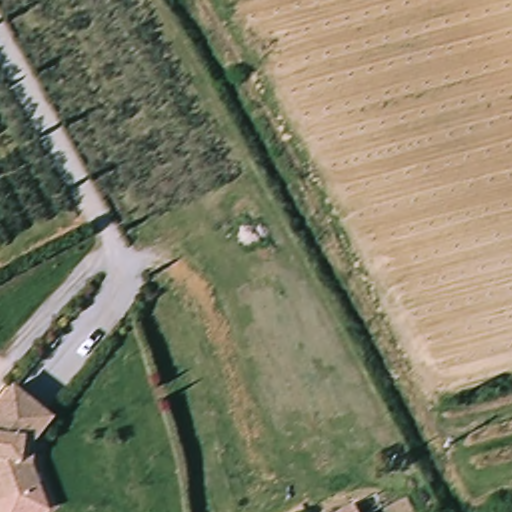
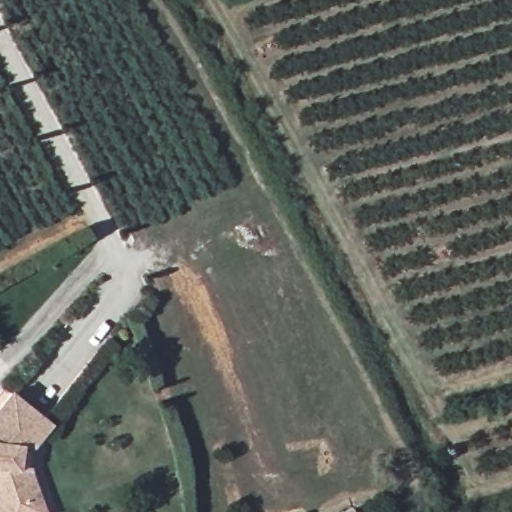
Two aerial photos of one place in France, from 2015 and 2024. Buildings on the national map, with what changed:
unchanged [(50,441),(46,473),(55,499),(19,512),(3,512),(0,507),(0,416),(19,392),(58,425),(50,441)]
unchanged [(354,512),(339,512),(351,506),(354,512)]

